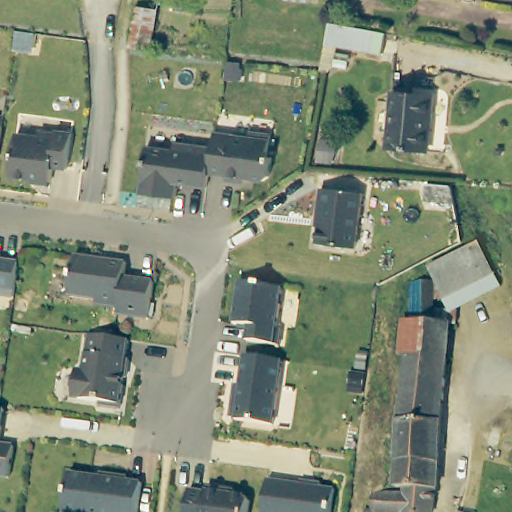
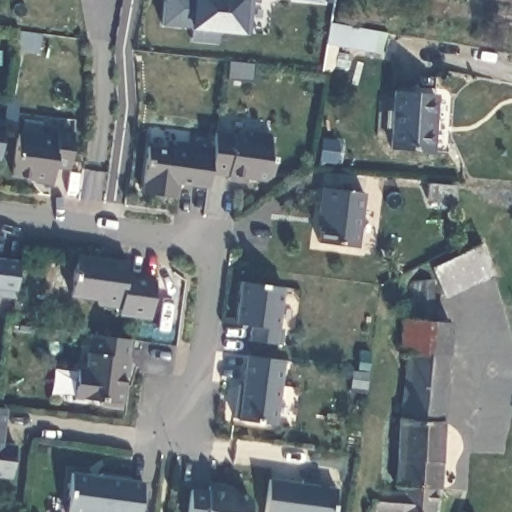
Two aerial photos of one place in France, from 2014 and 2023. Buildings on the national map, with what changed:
new [(260,0),(259,8),(252,7),(249,38),(218,35),(216,48),(190,46),(191,32),(161,30),(165,0),(260,0)]
unchanged [(324,0),(323,3),(293,0),(324,0)]
unchanged [(331,39),(334,20),(392,28),(389,48),(331,39)]
unchanged [(434,94),(430,149),(390,145),(394,91),(434,94)]
unchanged [(11,113),(6,156),(0,155),(0,112),(11,113)]
unchanged [(24,131),(46,134),(47,129),(63,131),(63,128),(79,130),(75,165),(60,164),(58,178),(18,173),(24,131)]
unchanged [(256,134),(257,129),(277,131),(275,153),(279,153),(277,173),(271,176),(252,174),(252,178),(233,176),(234,172),(217,169),(220,146),(220,144),(222,130),(256,134)]
unchanged [(154,143),(180,146),(181,139),(220,144),(220,146),(217,169),(215,184),(184,180),(182,195),(148,190),(154,143)]
unchanged [(319,228),(315,227),(322,190),(365,196),(358,249),(317,242),(319,228)]
unchanged [(444,283),(437,270),(458,258),(482,245),(497,276),(454,300),(444,283)]
unchanged [(82,252),(134,259),(132,274),(162,278),(157,315),(126,311),(127,304),(104,301),(105,296),(77,293),(82,252)]
unchanged [(26,260),(21,295),(0,292),(0,256),(26,260)]
unchanged [(289,325),(287,341),(255,337),(257,322),(242,320),(247,278),(289,283),(284,324),(289,325)]
unchanged [(443,487),(437,512),(403,512),(403,511),(387,510),(387,512),(369,512),(369,510),(373,510),(374,495),(406,498),(407,489),(398,489),(400,424),(411,359),(405,359),(408,322),(413,322),(413,282),(436,283),(437,310),(459,311),(460,311),(459,324),(453,324),(446,487),(443,487)]
unchanged [(134,355),(136,355),(134,374),(131,374),(127,406),(107,403),(108,398),(81,395),(84,366),(92,367),(97,331),(107,333),(136,337),(134,355)]
unchanged [(290,357),(281,421),(244,416),(244,415),(240,414),(244,380),(249,381),(253,352),(290,357)]
unchanged [(6,411),(0,446),(16,448),(11,480),(0,478),(0,410),(6,411)]
unchanged [(78,470),(105,473),(109,470),(136,474),(136,477),(150,479),(146,512),(77,512),(73,512),(78,470)]
unchanged [(272,503),(276,475),(309,480),(309,476),(329,478),(328,482),(343,484),(340,512),(271,512),(272,503)]
unchanged [(215,488),(215,483),(233,485),(232,489),(254,492),(257,497),(256,512),(195,512),(198,486),(215,488)]
unchanged [(469,502),(476,504),(482,507),(480,512),(465,512),(469,502)]

